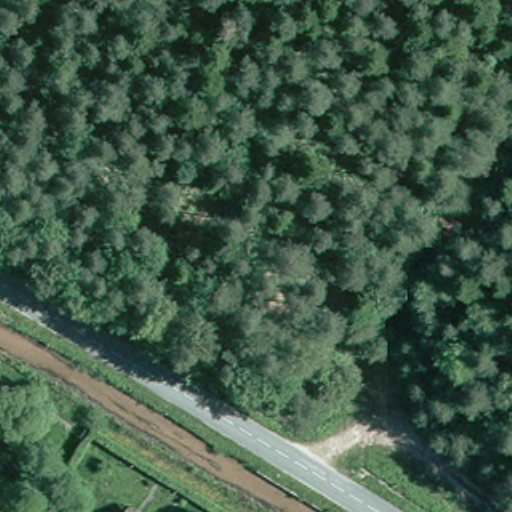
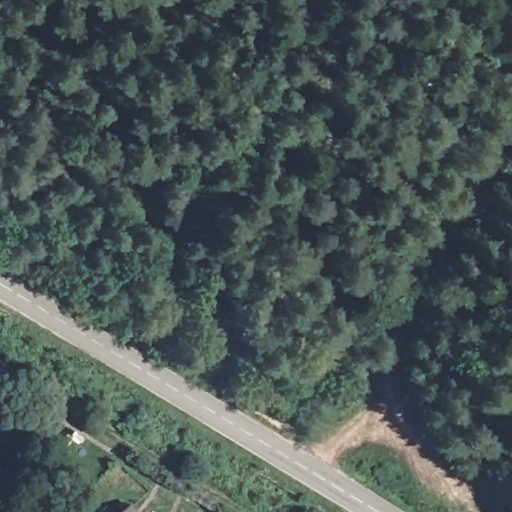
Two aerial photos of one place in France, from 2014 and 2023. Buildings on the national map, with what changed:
unchanged [(128,512),(121,512),(124,509),(128,512)]

